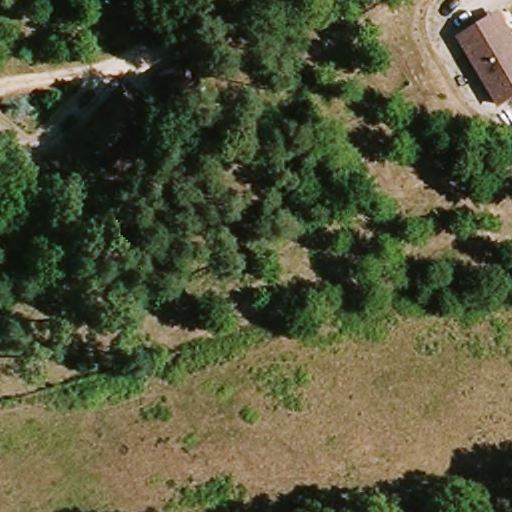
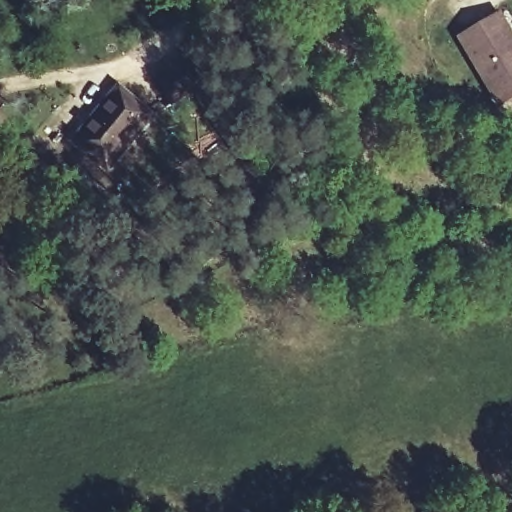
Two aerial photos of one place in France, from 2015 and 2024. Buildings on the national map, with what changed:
unchanged [(500,11),(512,29),(512,101),(500,108),(457,36),(500,11)]
unchanged [(125,88),(156,115),(106,168),(73,141),(125,88)]

